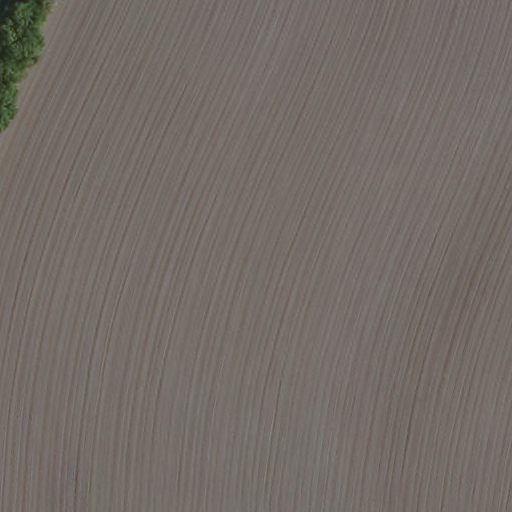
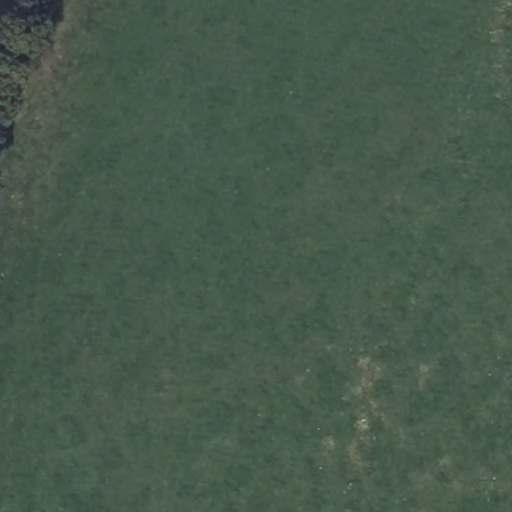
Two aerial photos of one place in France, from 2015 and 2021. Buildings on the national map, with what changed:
[]

